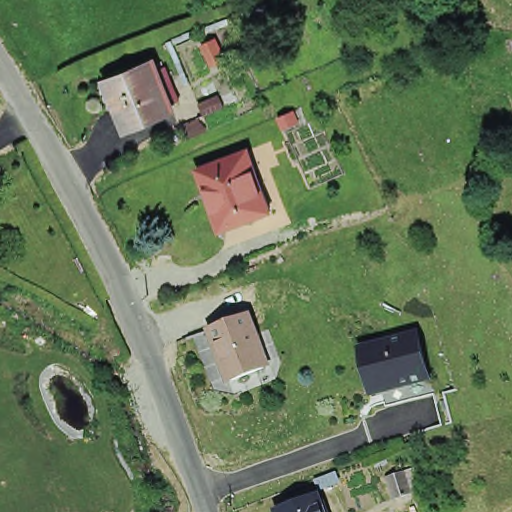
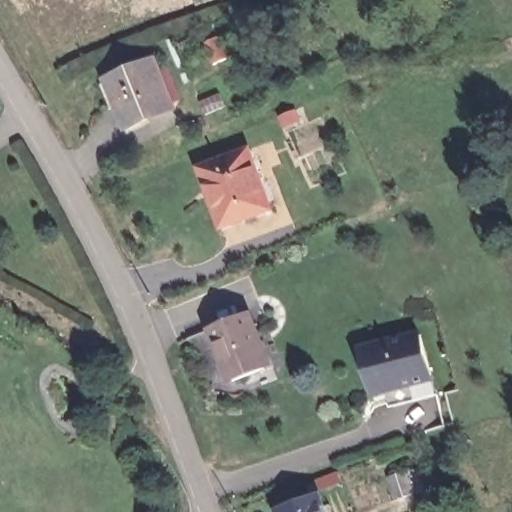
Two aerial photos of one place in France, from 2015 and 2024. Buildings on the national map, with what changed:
unchanged [(214,65),(206,44),(218,38),(228,60),(214,65)]
unchanged [(103,86),(109,84),(156,63),(159,70),(166,66),(181,100),(173,104),(176,107),(129,128),(119,106),(113,109),(103,86)]
unchanged [(207,115),(202,101),(221,94),(226,107),(207,115)]
unchanged [(286,127),(281,114),(289,111),(298,107),(303,120),(286,127)]
unchanged [(215,224),(192,164),(240,145),(264,205),(215,224)]
unchanged [(227,375),(224,369),(204,321),(242,305),(263,353),(264,359),(227,375)]
unchanged [(406,325),(418,369),(418,370),(372,382),(367,365),(354,358),(349,340),(406,325)]
unchanged [(418,494),(402,500),(394,481),(411,475),(418,494)]
unchanged [(318,495),(319,500),(326,498),(331,512),(282,512),(281,508),(318,495)]

